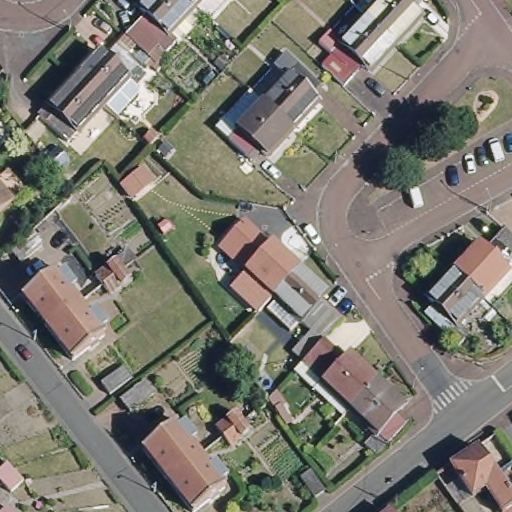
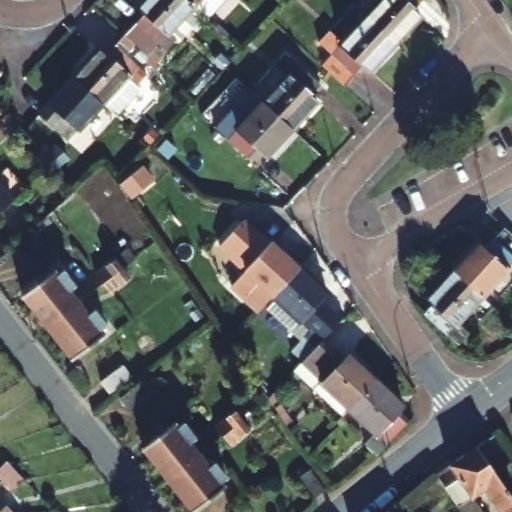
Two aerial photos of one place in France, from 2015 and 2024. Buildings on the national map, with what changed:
unchanged [(169,41),(160,49),(151,41),(141,51),(120,30),(138,11),(131,5),(136,0),(179,0),(195,14),(169,41)]
unchanged [(195,14),(179,0),(209,0),(195,14)]
unchanged [(385,0),(424,0),(419,6),(426,12),(400,40),(372,13),(385,0)]
unchanged [(375,68),(368,61),(349,82),(327,61),(337,52),(324,38),(333,28),(347,41),(372,13),(400,40),(375,68)]
unchanged [(90,53),(97,59),(107,48),(140,79),(129,90),(129,96),(113,113),(115,115),(109,122),(92,108),(64,81),(90,53)]
unchanged [(294,80),(280,66),(289,56),(324,90),(315,99),(322,105),(295,132),(269,106),(294,80)]
unchanged [(58,143),(37,123),(45,114),(40,107),(64,81),(92,108),(58,143)]
unchanged [(270,159),(264,154),(255,164),(224,135),(234,124),(231,122),(257,95),(269,106),(295,132),(270,159)]
unchanged [(0,215),(0,187),(14,202),(0,215)]
unchanged [(279,291),(278,293),(259,314),(228,288),(249,268),(222,245),(244,220),(270,243),(274,239),(303,263),(279,291)]
unchanged [(37,229),(47,241),(24,263),(13,251),(37,229)]
unchanged [(492,296),(463,270),(487,244),(494,250),(512,231),(512,275),(492,296)]
unchanged [(112,293),(105,284),(98,274),(117,260),(125,269),(131,278),(112,293)]
unchanged [(299,347),(317,326),(278,293),(279,291),(303,263),(332,288),(327,295),(347,314),(322,341),(309,357),(299,347)]
unchanged [(24,295),(56,270),(60,274),(65,269),(77,285),(72,290),(82,302),(50,327),(24,295)]
unchanged [(492,296),(465,325),(476,336),(467,346),(433,314),(443,304),(436,298),(463,270),(492,296)]
unchanged [(92,315),(97,310),(109,325),(102,329),(107,334),(74,359),(50,327),(82,302),(92,315)]
unchanged [(355,407),(347,415),(310,384),(315,377),(302,365),(309,357),(322,341),(345,360),(350,354),(379,379),(355,407)]
unchanged [(115,388),(105,376),(127,361),(135,372),(115,388)]
unchanged [(130,408),(122,397),(146,379),(155,390),(130,408)]
unchanged [(379,379),(408,404),(403,410),(413,419),(382,454),(372,444),(383,431),(355,407),(379,379)]
unchanged [(143,449),(175,423),(179,427),(185,423),(197,438),(191,442),(200,455),(169,481),(143,449)]
unchanged [(512,495),(512,512),(503,512),(490,492),(475,501),(455,469),(482,450),(512,495)]
unchanged [(209,466),(215,461),(227,477),(222,482),(225,486),(193,512),(169,481),(200,455),(209,466)]
unchanged [(0,478),(0,458),(2,456),(19,473),(7,485),(0,478)]
unchanged [(315,496),(301,475),(312,468),(326,490),(315,496)]
unchanged [(395,512),(382,512),(390,505),(395,512)]
unchanged [(3,512),(1,512),(2,511),(3,512)]

